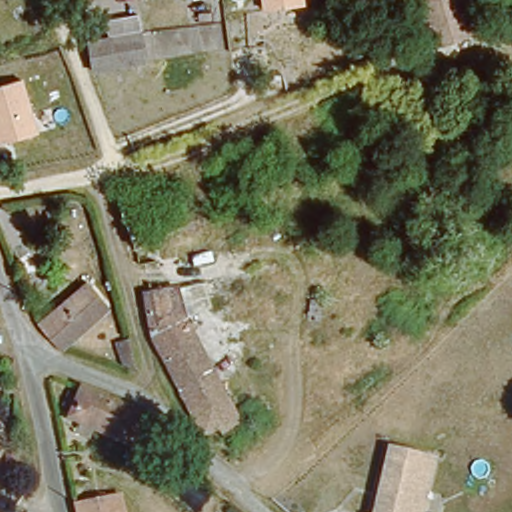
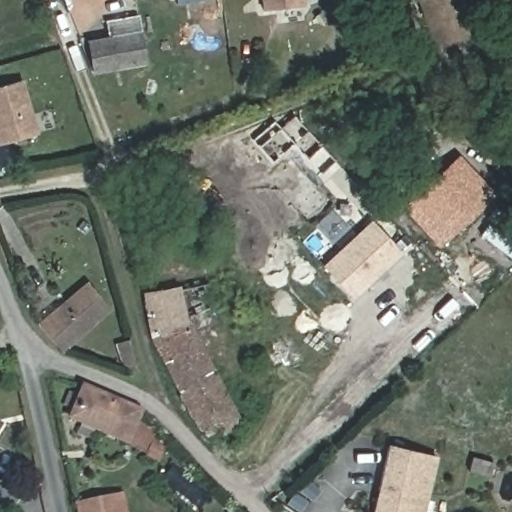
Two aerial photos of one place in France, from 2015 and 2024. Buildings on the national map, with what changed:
unchanged [(305,0),(306,5),(265,11),(263,0),(305,0)]
unchanged [(412,37),(411,0),(447,0),(449,35),(412,37)]
unchanged [(94,61),(91,39),(143,30),(148,60),(96,70),(94,61)]
unchanged [(0,145),(0,89),(25,81),(40,134),(0,145)]
new [(274,123),(280,129),(294,116),(334,161),(320,175),(292,146),(272,163),(257,148),(252,141),(274,123)]
new [(496,195),(439,249),(401,209),(459,155),(496,195)]
unchanged [(146,191),(161,228),(136,240),(120,204),(123,202),(146,191)]
new [(371,220),(403,254),(353,300),(322,267),(371,220)]
unchanged [(232,418),(225,422),(221,415),(204,424),(156,331),(146,286),(177,281),(183,310),(238,415),(232,418)]
unchanged [(84,285),(105,310),(59,349),(38,324),(84,285)]
unchanged [(137,440),(136,443),(67,414),(80,384),(136,408),(131,421),(142,425),(137,440)]
unchanged [(430,459),(417,512),(360,512),(378,446),(430,459)]
unchanged [(78,510),(110,502),(112,512),(78,512),(78,510)]

